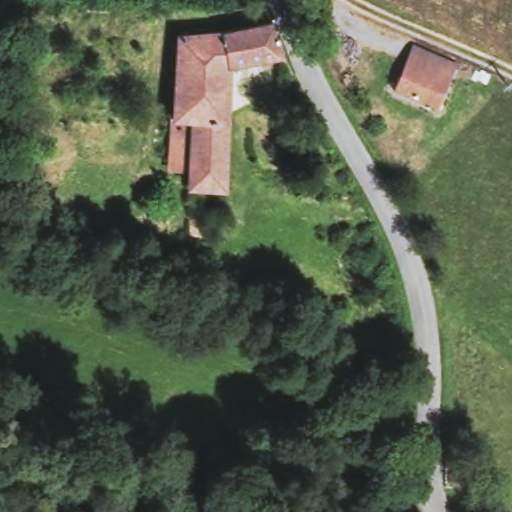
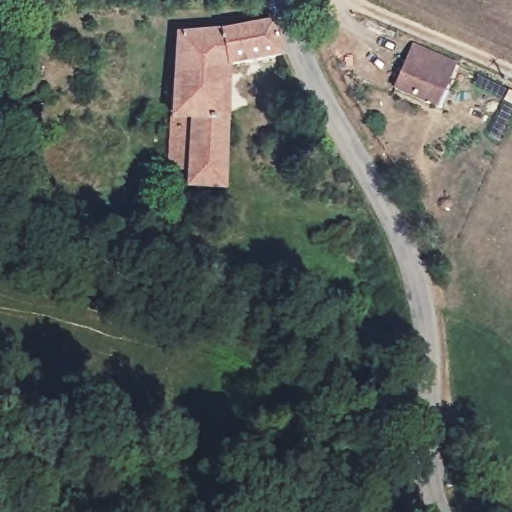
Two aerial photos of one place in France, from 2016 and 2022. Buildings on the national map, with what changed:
unchanged [(290,56),(231,68),(230,199),(204,195),(187,194),(190,175),(168,174),(168,118),(174,118),(179,36),(276,22),(290,56)]
unchanged [(417,43),(455,61),(436,105),(397,90),(417,43)]

